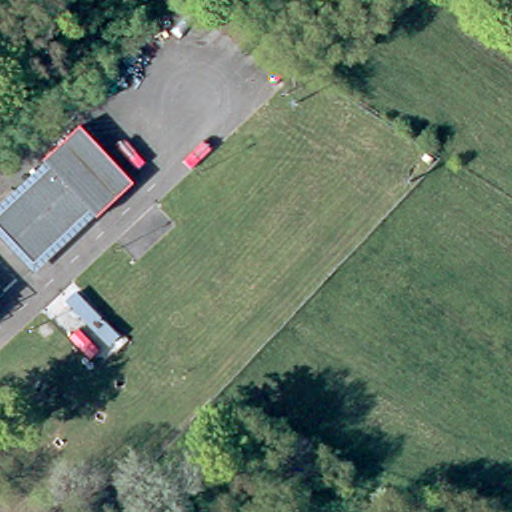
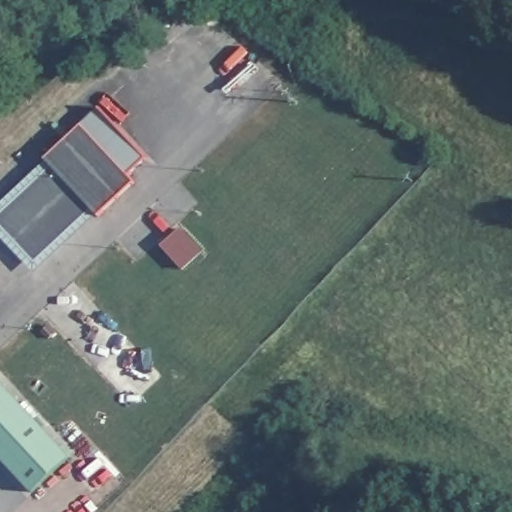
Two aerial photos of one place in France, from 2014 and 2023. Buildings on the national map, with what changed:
new [(80,124),(98,107),(147,157),(126,177),(80,124)]
unchanged [(40,163),(38,158),(78,122),(130,182),(93,220),(88,213),(26,271),(0,243),(0,199),(40,163)]
new [(70,459),(31,495),(0,461),(0,381),(70,459)]

